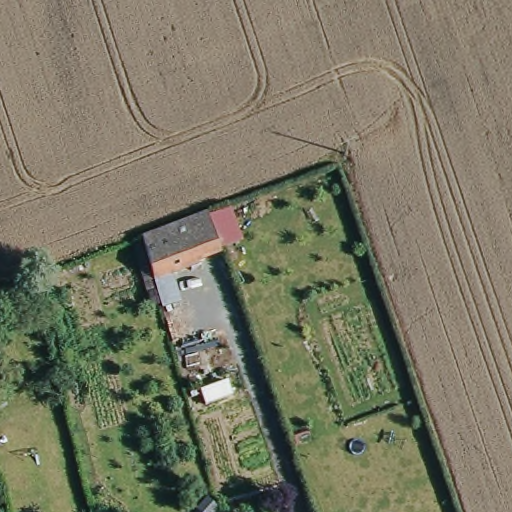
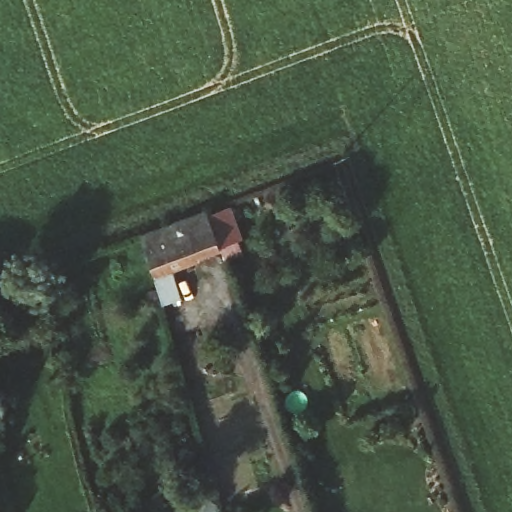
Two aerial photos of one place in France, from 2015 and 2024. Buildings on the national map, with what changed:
unchanged [(205,210),(220,251),(200,258),(193,260),(192,254),(152,267),(142,234),(205,210)]

